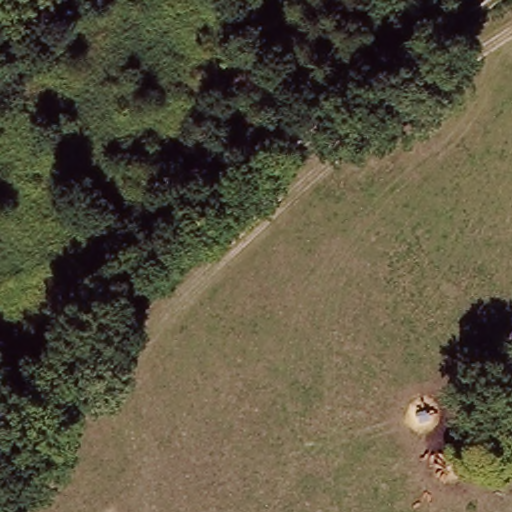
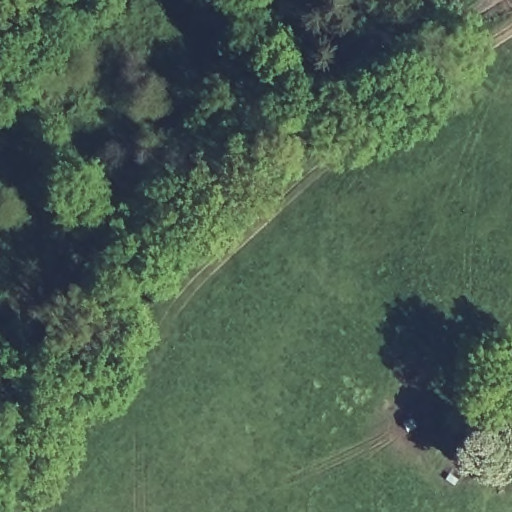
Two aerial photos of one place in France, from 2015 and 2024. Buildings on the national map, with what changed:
unchanged [(191,199),(165,216),(147,191),(175,174),(191,199)]

